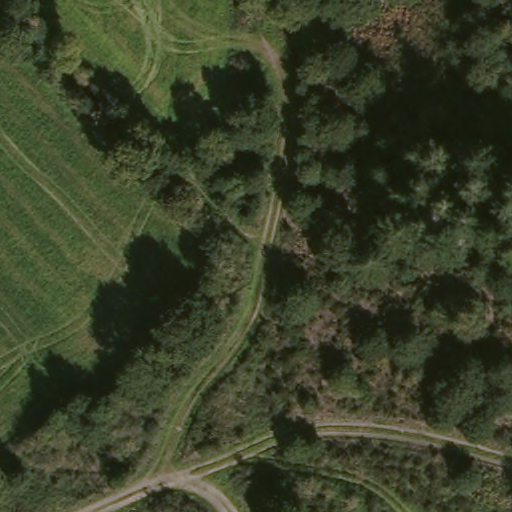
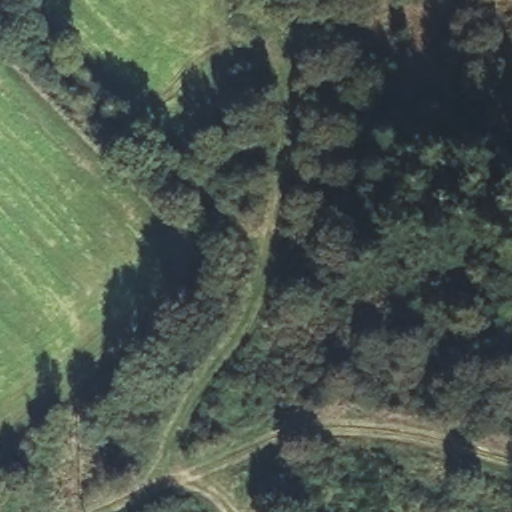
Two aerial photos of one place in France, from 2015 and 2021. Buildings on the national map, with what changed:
[]

